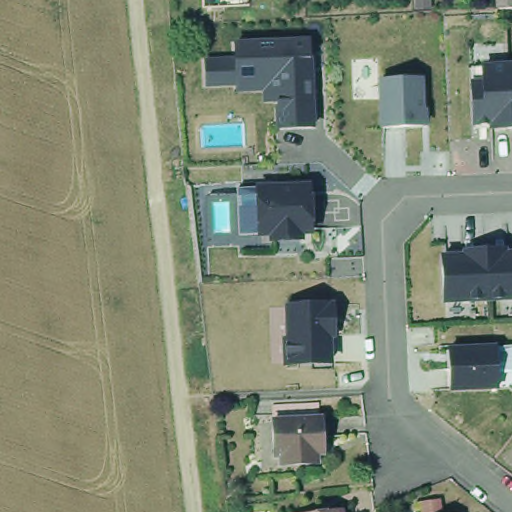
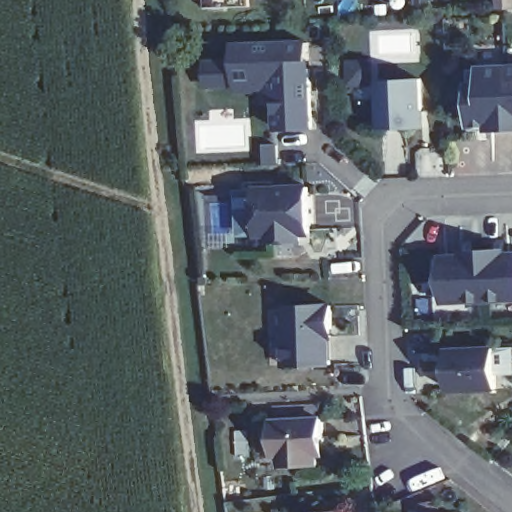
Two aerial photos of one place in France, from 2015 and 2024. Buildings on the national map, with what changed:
unchanged [(495,0),(512,0),(512,10),(504,10),(496,11),(495,0)]
unchanged [(314,37),(316,129),(273,130),(272,109),(266,105),(264,92),(234,94),(234,82),(203,84),(203,59),(230,57),(231,40),(314,37)]
unchanged [(469,121),(469,112),(466,66),(503,64),(512,63),(512,125),(507,125),(487,126),(469,127),(469,121)]
unchanged [(421,80),(423,120),(423,128),(383,130),(383,121),(381,82),(421,80)]
unchanged [(306,184),(308,229),(306,229),(306,226),(297,227),(298,236),(268,237),(268,230),(256,231),(254,185),(306,184)]
unchanged [(505,251),(505,256),(512,256),(512,300),(488,301),(487,267),(486,252),(497,251),(505,251)]
unchanged [(443,259),(459,258),(467,257),(467,253),(474,252),(486,252),(487,267),(488,301),(461,302),(445,303),(443,266),(443,259)]
unchanged [(328,365),(287,366),(286,341),(291,341),(290,309),(290,308),(291,308),(291,309),(333,307),(334,330),(334,337),(328,338),(329,365),(328,365)]
unchanged [(496,350),(498,389),(465,390),(451,391),(450,371),(449,351),(453,351),(463,351),(496,350)]
unchanged [(277,467),(270,467),(269,432),(268,416),(314,415),(314,431),(317,430),(318,450),(319,465),(311,464),(312,475),(291,476),(278,476),(277,467)]
unchanged [(344,512),(313,512),(344,509),(344,512)]

